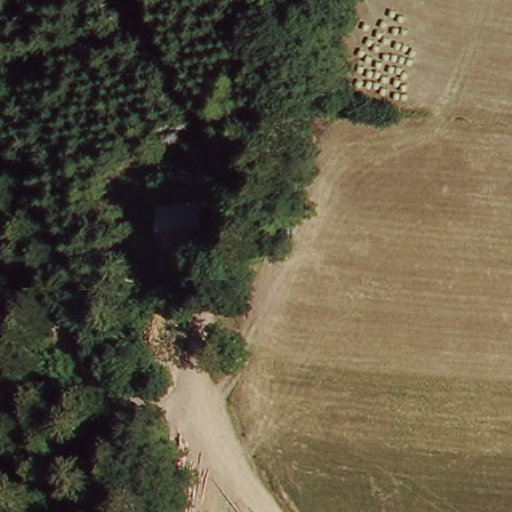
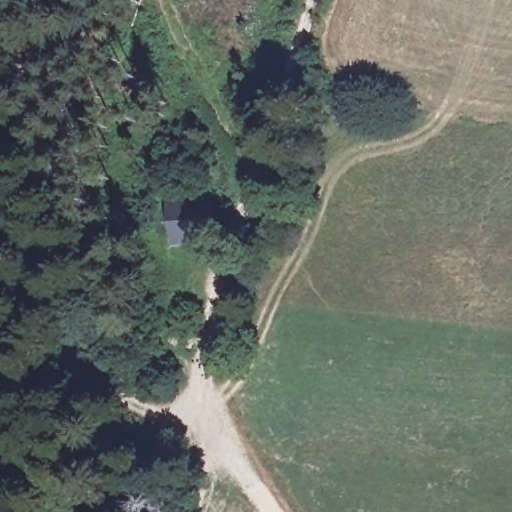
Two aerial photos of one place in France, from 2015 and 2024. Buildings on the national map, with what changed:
unchanged [(214,193),(217,238),(180,241),(179,237),(172,197),(214,193)]

